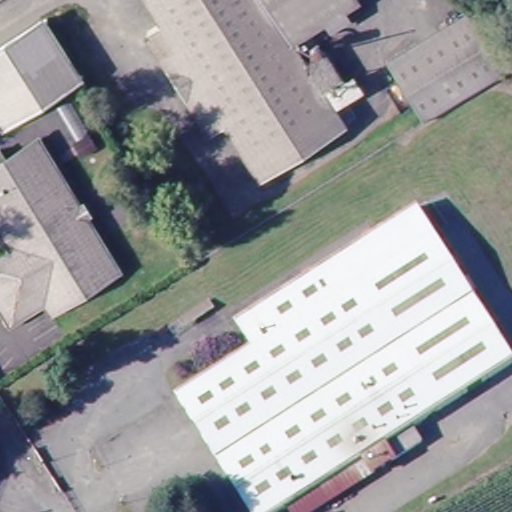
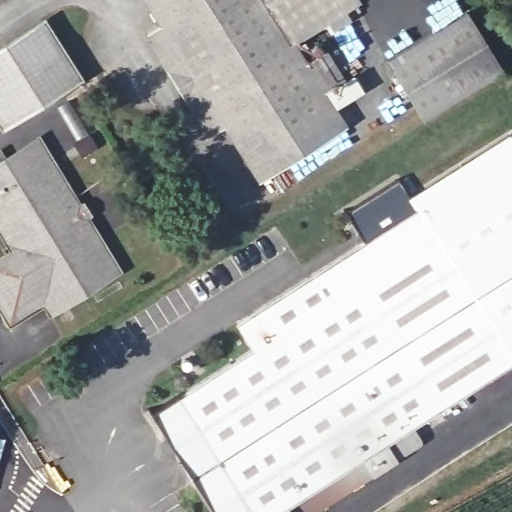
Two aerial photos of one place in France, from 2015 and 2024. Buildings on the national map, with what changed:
unchanged [(193,116),(159,61),(150,47),(156,44),(151,36),(163,28),(146,0),(356,0),(361,7),(366,15),(351,23),(332,35),(327,27),(293,48),(306,68),(325,57),(342,81),(351,78),(360,95),(333,111),(345,132),(260,184),(227,131),(214,139),(209,130),(203,135),(193,116)]
unchanged [(506,72),(447,109),(426,122),(390,64),(469,14),(506,72)]
unchanged [(7,117),(0,106),(0,51),(47,20),(84,79),(43,106),(12,125),(7,117)]
new [(398,180),(409,196),(509,133),(512,139),(512,356),(423,211),(366,245),(347,211),(398,180)]
unchanged [(13,252),(10,246),(0,231),(0,153),(6,162),(38,144),(43,140),(118,268),(121,273),(50,316),(48,311),(42,301),(9,321),(5,323),(0,316),(0,260),(13,252)]
unchanged [(249,512),(181,394),(256,348),(241,321),(423,211),(512,356),(512,370),(386,446),(395,460),(370,476),(361,461),(284,508),(278,512),(249,512)]
unchanged [(196,304),(202,313),(164,336),(159,327),(196,304)]
unchanged [(370,476),(312,512),(286,512),(284,508),(361,461),(370,476)]

